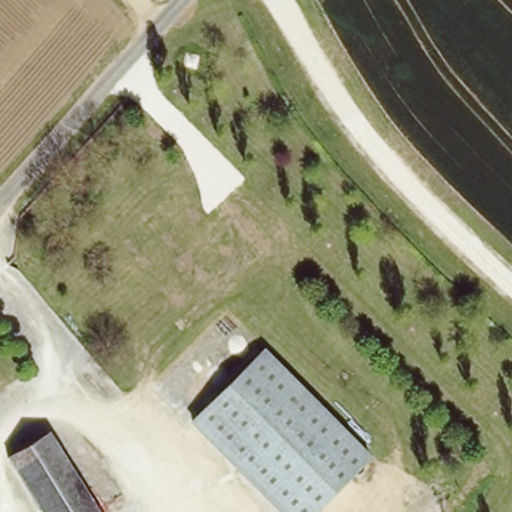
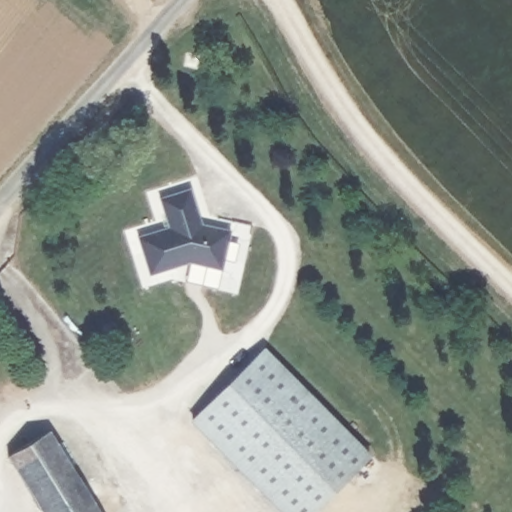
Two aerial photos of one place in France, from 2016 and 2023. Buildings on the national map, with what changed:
new [(162,199),(193,189),(200,207),(205,224),(235,230),(227,270),(194,263),(153,276),(141,238),(172,228),(162,199)]
unchanged [(370,458),(316,512),(281,512),(185,416),(255,346),(370,458)]
unchanged [(6,456),(47,432),(67,466),(96,512),(39,512),(6,456)]

